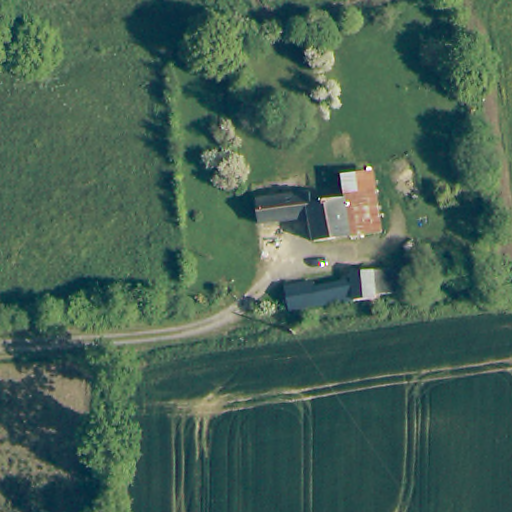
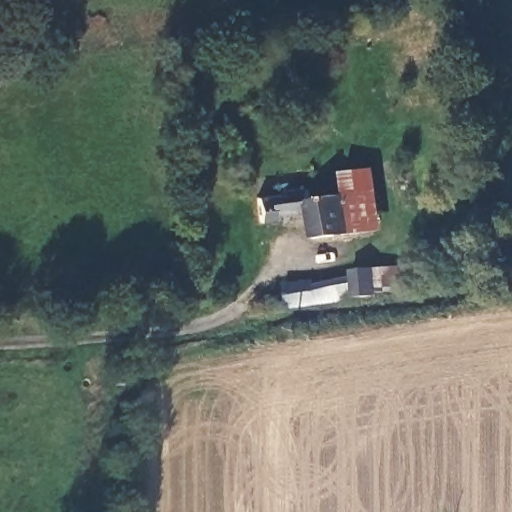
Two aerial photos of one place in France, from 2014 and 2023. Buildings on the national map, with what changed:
unchanged [(340,201),(339,182),(372,179),(378,237),(346,241),(340,201)]
unchanged [(306,193),(308,203),(340,201),(346,241),(310,245),(307,219),(256,222),(253,198),(306,193)]
unchanged [(349,283),(351,271),(369,269),(403,263),(408,287),(370,294),(284,307),(284,290),(349,283)]

